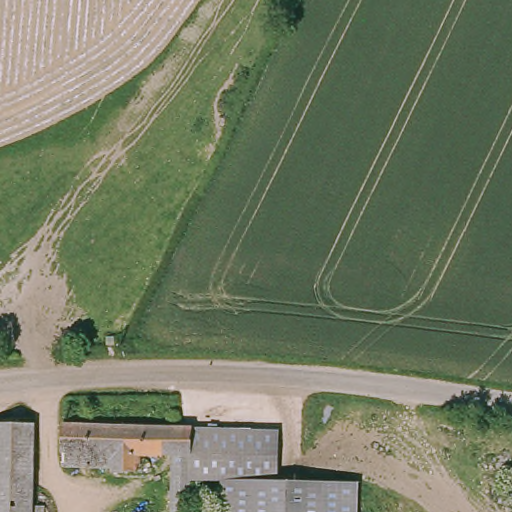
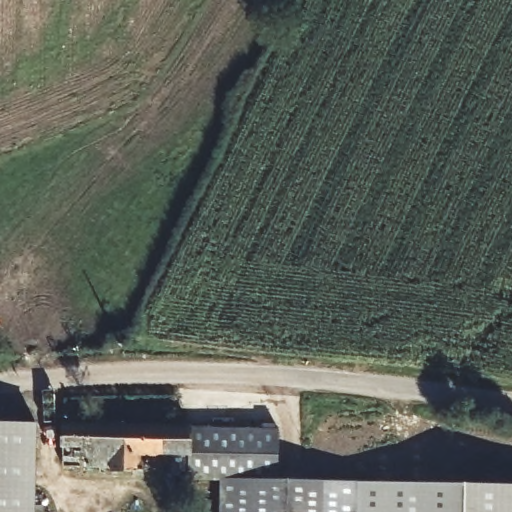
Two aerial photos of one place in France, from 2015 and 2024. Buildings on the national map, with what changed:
unchanged [(37,429),(33,512),(0,512),(0,430),(37,429)]
unchanged [(131,459),(131,473),(106,473),(106,467),(60,466),(60,435),(194,433),(192,480),(191,512),(166,512),(166,460),(131,459)]
unchanged [(280,482),(350,484),(356,484),(355,512),(222,512),(223,481),(192,480),(194,433),(280,435),(280,482)]
new [(512,512),(355,512),(356,484),(512,486),(512,512)]

